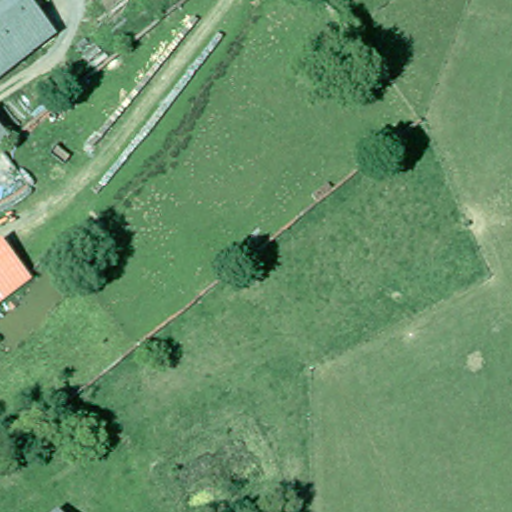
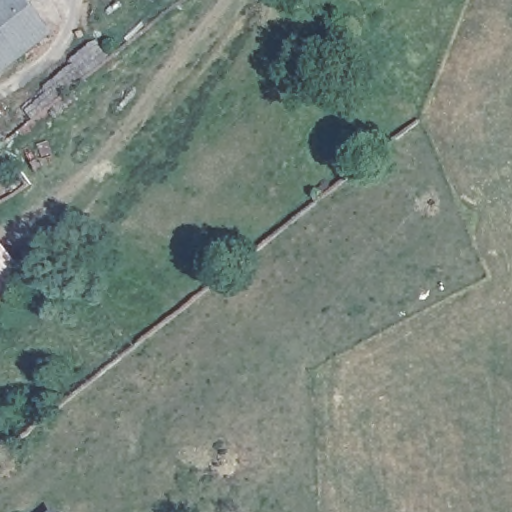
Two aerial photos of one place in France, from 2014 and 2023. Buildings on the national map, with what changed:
unchanged [(47,31),(0,69),(0,0),(25,0),(23,1),(47,31)]
unchanged [(0,138),(0,132),(3,135),(0,138)]
unchanged [(0,304),(0,237),(32,280),(0,304)]
unchanged [(65,511),(65,512),(64,512),(65,511)]

